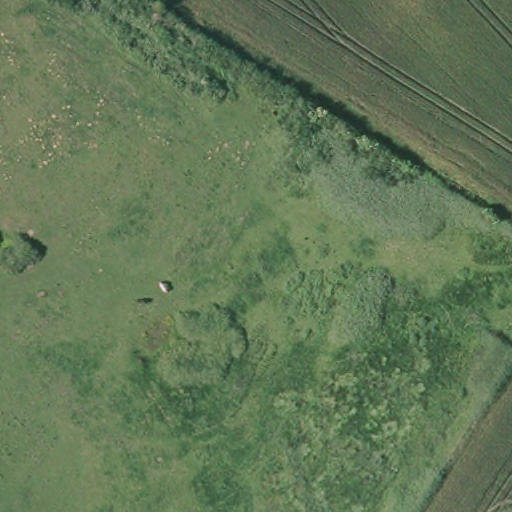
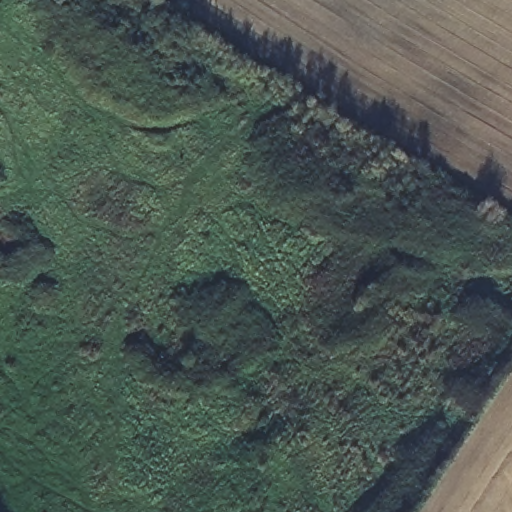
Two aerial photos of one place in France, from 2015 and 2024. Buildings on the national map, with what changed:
[]

